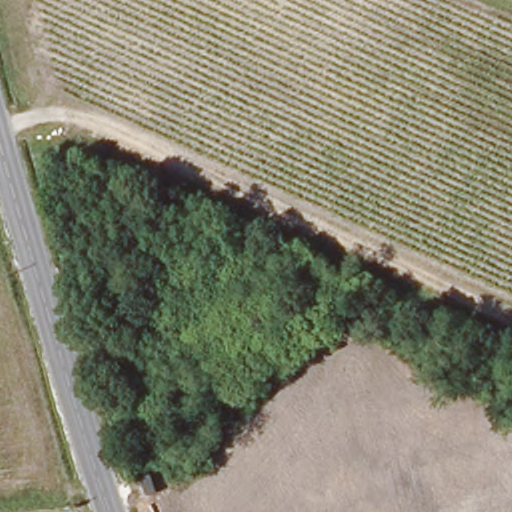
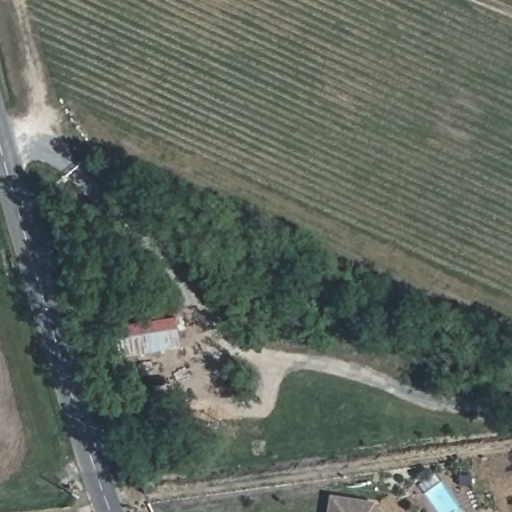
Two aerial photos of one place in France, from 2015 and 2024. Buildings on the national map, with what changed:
new [(377,502),(384,512),(329,512),(332,495),(377,502)]

